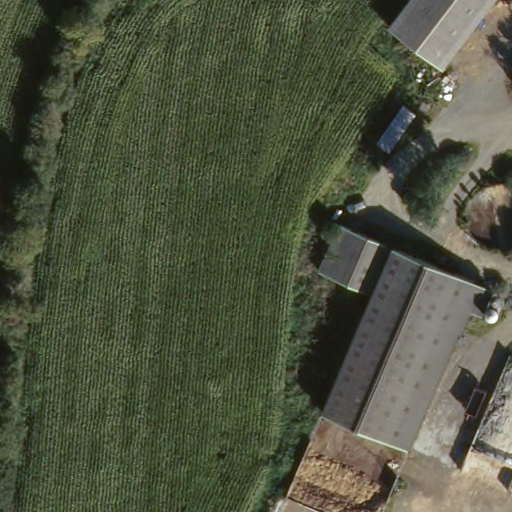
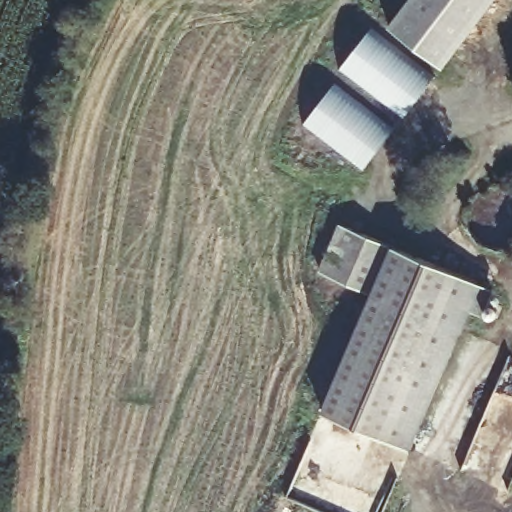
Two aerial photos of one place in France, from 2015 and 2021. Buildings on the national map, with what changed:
unchanged [(438,72),(384,31),(408,0),(494,0),(438,72)]
new [(433,78),(405,116),(340,67),(369,28),(433,78)]
new [(393,130),(364,169),(303,122),(331,85),(393,130)]
unchanged [(501,283),(491,308),(480,303),(420,443),(333,407),(383,289),(330,267),(350,219),(501,283)]

